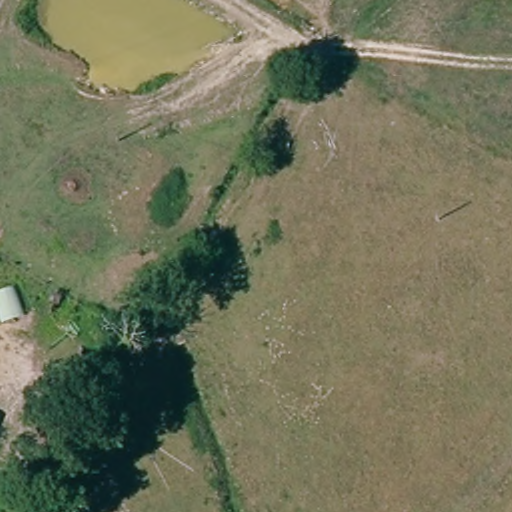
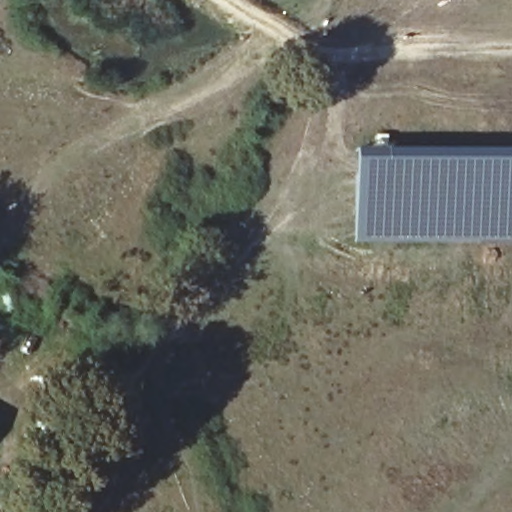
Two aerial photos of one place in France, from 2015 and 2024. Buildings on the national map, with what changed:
new [(355,242),(355,147),(512,148),(512,243),(355,242)]

